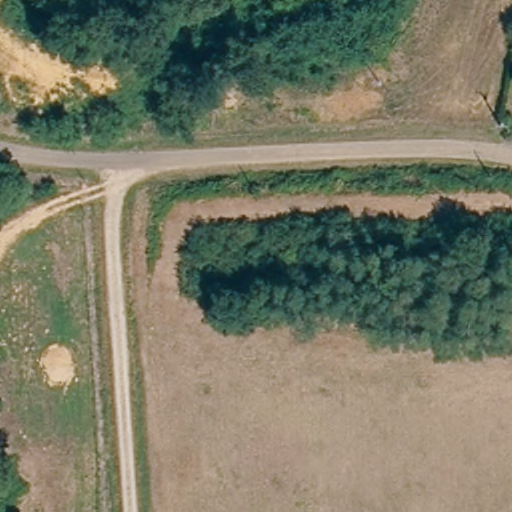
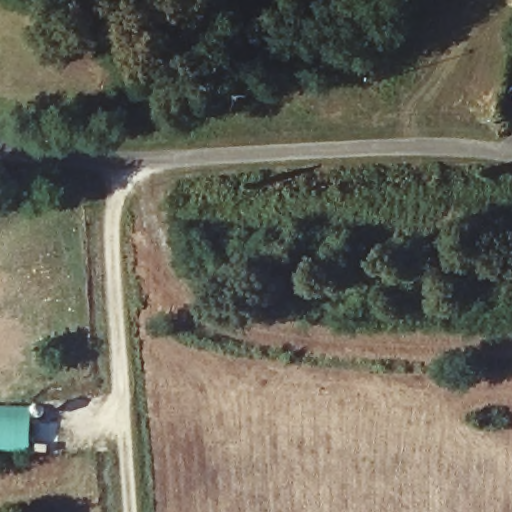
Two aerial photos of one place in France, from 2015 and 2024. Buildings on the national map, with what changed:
new [(31,453),(0,452),(0,408),(35,410),(31,453)]

